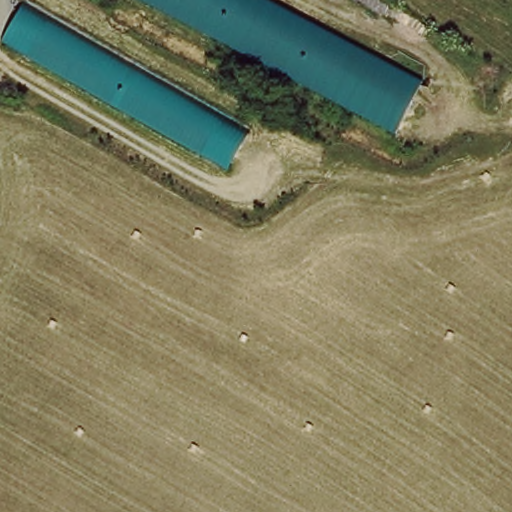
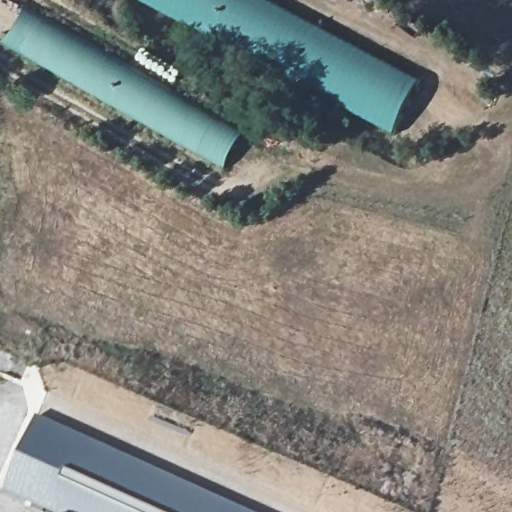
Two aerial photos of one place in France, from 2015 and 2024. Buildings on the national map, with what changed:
unchanged [(19,0),(255,139),(228,187),(0,45),(0,26),(13,0),(19,0)]
unchanged [(395,145),(134,0),(271,0),(433,87),(395,145)]
new [(5,491),(40,415),(255,512),(52,512),(5,491)]

